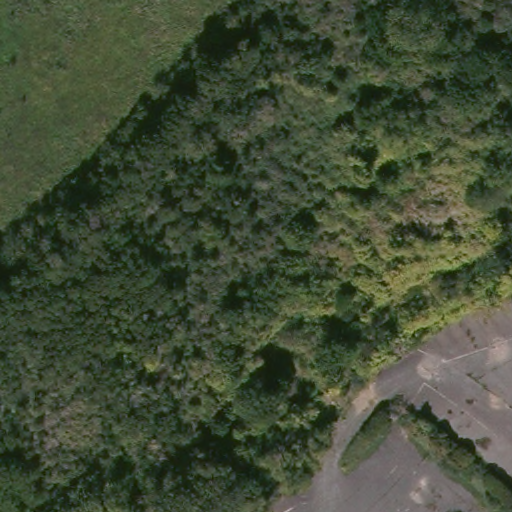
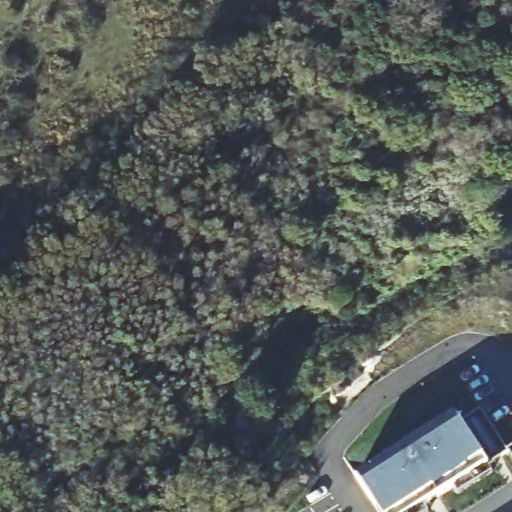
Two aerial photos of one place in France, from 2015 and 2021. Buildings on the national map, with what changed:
new [(507,453),(487,465),(414,512),(379,512),(363,486),(357,477),(453,415),(461,425),(481,411),(507,450),(512,447),(512,458),(507,453)]

